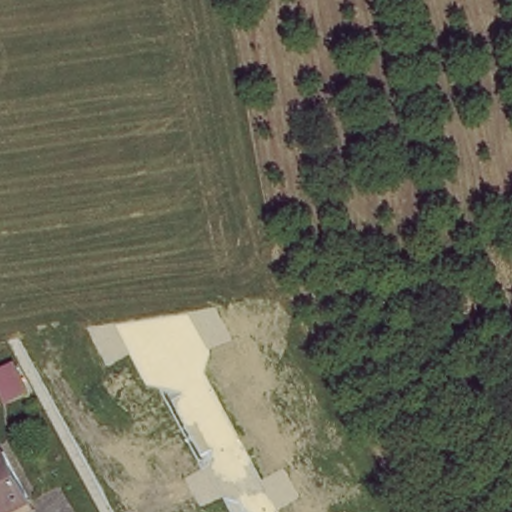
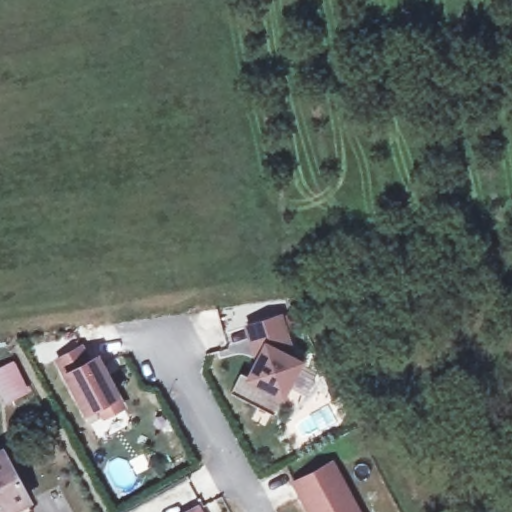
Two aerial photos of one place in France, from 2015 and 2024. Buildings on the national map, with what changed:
new [(253,400),(227,387),(237,368),(244,372),(258,345),(249,341),(243,321),(277,310),(286,340),(282,348),(296,356),(279,390),(270,408),(253,400)]
new [(85,356),(92,352),(98,363),(103,371),(119,401),(100,411),(94,401),(81,408),(52,355),(77,342),(85,356)]
unchanged [(18,357),(33,395),(9,404),(0,386),(0,366),(18,357)]
unchanged [(11,454),(34,498),(9,512),(0,512),(0,459),(11,454)]
new [(332,462),(358,512),(310,512),(294,482),(332,462)]
new [(195,508),(197,512),(189,512),(195,508)]

